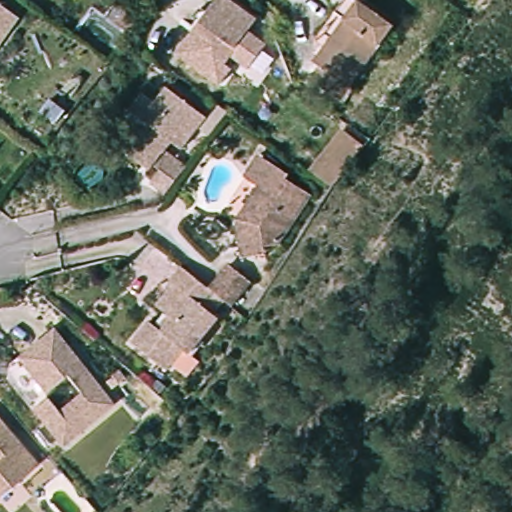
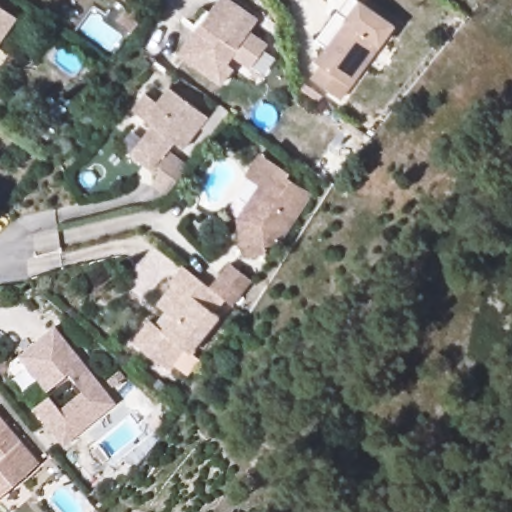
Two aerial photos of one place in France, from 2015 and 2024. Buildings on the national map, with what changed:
unchanged [(215,0),(239,0),(259,15),(250,27),(261,35),(268,40),(262,48),(252,62),(233,50),(227,58),(233,63),(222,78),(181,48),(215,0)]
unchanged [(352,85),(311,55),(331,31),(320,21),(337,0),(355,0),(356,1),(395,31),(352,85)]
unchanged [(140,161),(126,151),(148,121),(128,106),(142,86),(155,95),(163,83),(201,111),(178,144),(168,137),(161,146),(183,162),(163,190),(148,179),(158,165),(151,160),(148,166),(140,161)]
unchanged [(209,127),(201,121),(218,99),(226,104),(209,127)]
unchanged [(251,196),(238,189),(244,179),(261,152),(291,170),(289,174),(313,189),(281,241),(246,250),(243,234),(238,216),(251,196)]
unchanged [(186,378),(171,366),(167,372),(133,344),(151,323),(163,334),(174,320),(159,307),(176,286),(173,284),(185,269),(203,285),(211,291),(231,267),(253,285),(233,309),(225,302),(213,316),(219,321),(190,357),(198,363),(186,378)]
unchanged [(53,330),(114,402),(65,445),(35,410),(48,398),(60,412),(83,392),(67,374),(46,392),(18,359),(53,330)]
unchanged [(0,499),(0,418),(40,464),(0,499)]

